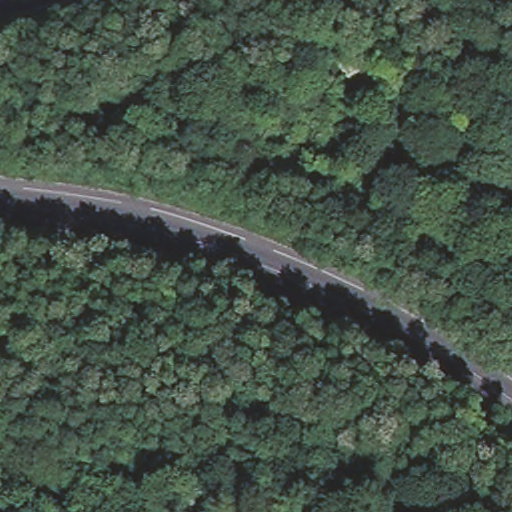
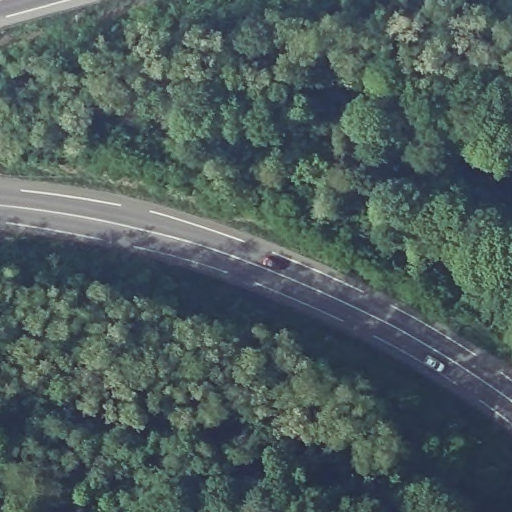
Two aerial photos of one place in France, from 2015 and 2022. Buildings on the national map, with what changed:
unchanged [(326,75),(345,87),(330,109),(311,96),(326,75)]

